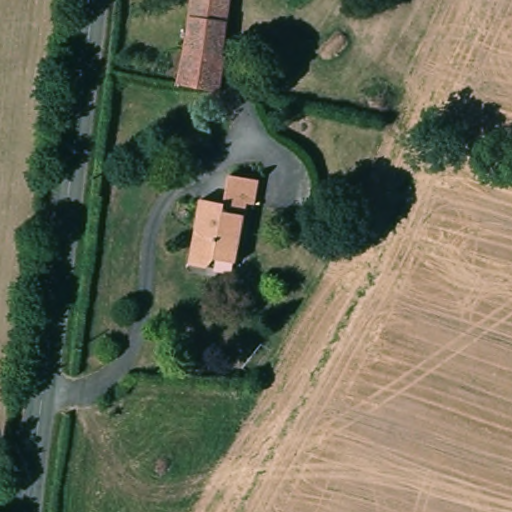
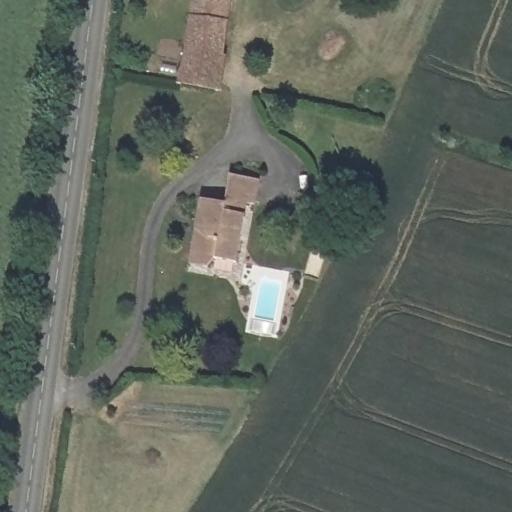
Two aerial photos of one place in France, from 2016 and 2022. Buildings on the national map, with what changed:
unchanged [(204,85),(183,81),(182,81),(189,45),(190,39),(196,0),(235,0),(222,90),(204,85)]
unchanged [(187,245),(199,192),(223,197),(229,175),(257,181),(250,208),(244,206),(232,256),(210,251),(204,260),(185,255),(187,245)]

